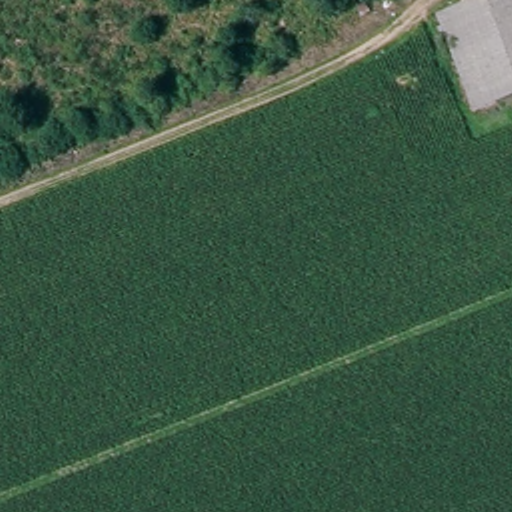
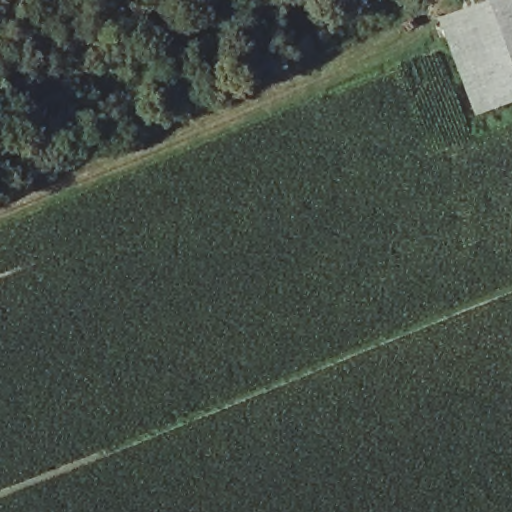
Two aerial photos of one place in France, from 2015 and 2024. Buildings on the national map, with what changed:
unchanged [(485,0),(512,0),(512,76),(480,2),(485,0)]
unchanged [(512,95),(472,112),(434,22),(480,2),(512,76),(512,95)]

